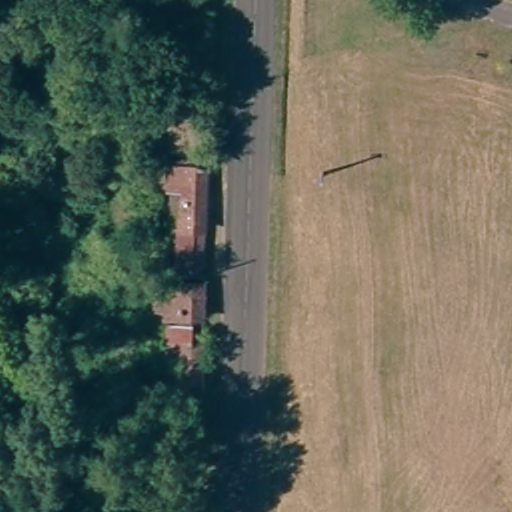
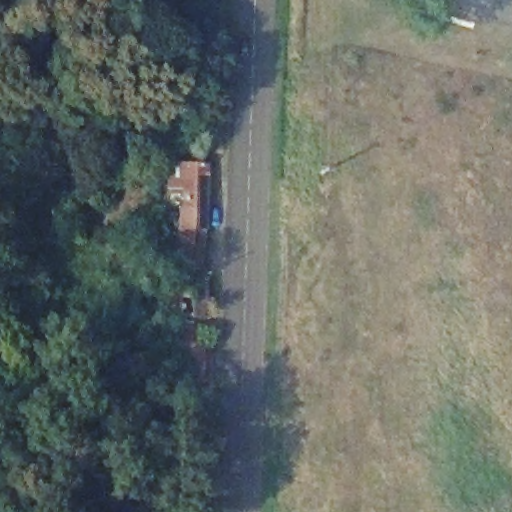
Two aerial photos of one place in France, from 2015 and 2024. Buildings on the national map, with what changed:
unchanged [(175,263),(175,242),(180,242),(181,206),(185,207),(185,182),(169,180),(170,154),(205,156),(205,219),(190,220),(190,244),(190,263),(175,263)]
unchanged [(201,278),(200,310),(165,308),(165,294),(151,293),(145,293),(145,275),(201,278)]
unchanged [(175,375),(175,363),(168,362),(169,337),(200,339),(199,377),(175,375)]

